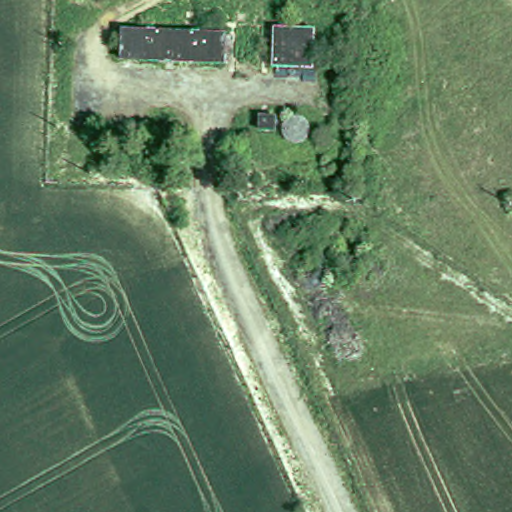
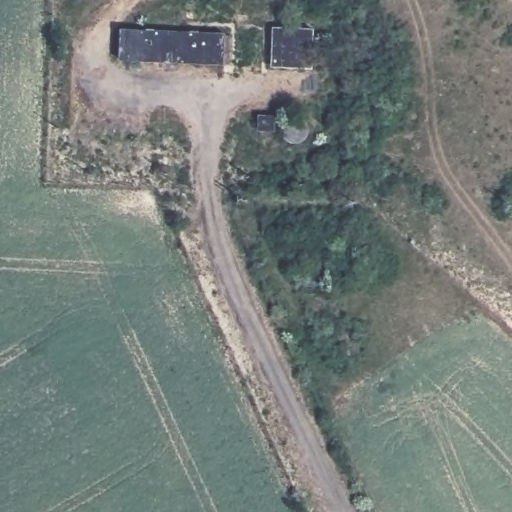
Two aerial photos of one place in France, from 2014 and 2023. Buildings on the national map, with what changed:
unchanged [(309,25),(308,63),(269,60),(271,23),(309,25)]
unchanged [(223,28),(221,59),(119,54),(120,24),(223,28)]
unchanged [(279,116),(278,132),(259,131),(260,115),(279,116)]

